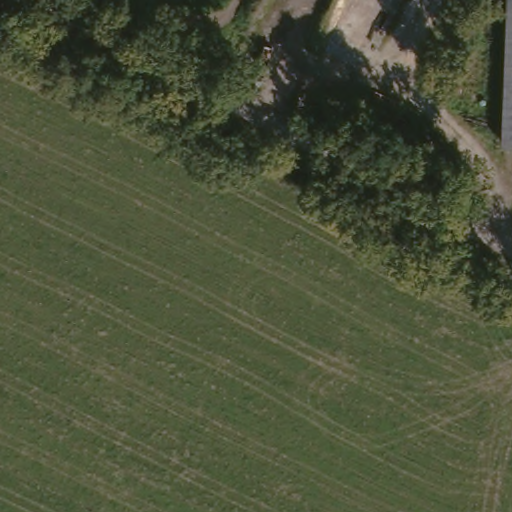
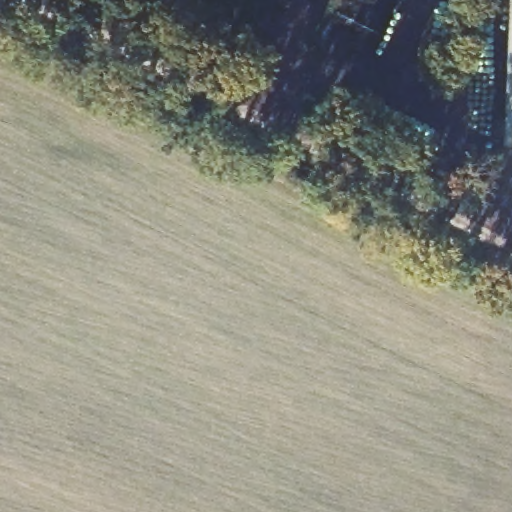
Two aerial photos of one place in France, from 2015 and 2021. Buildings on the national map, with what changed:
unchanged [(509,0),(512,0),(512,148),(503,148),(509,0)]

